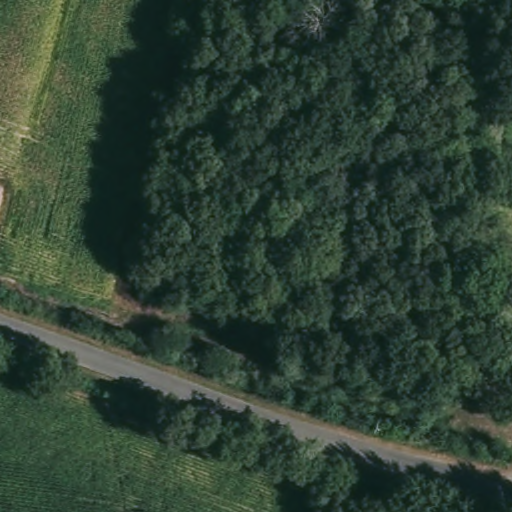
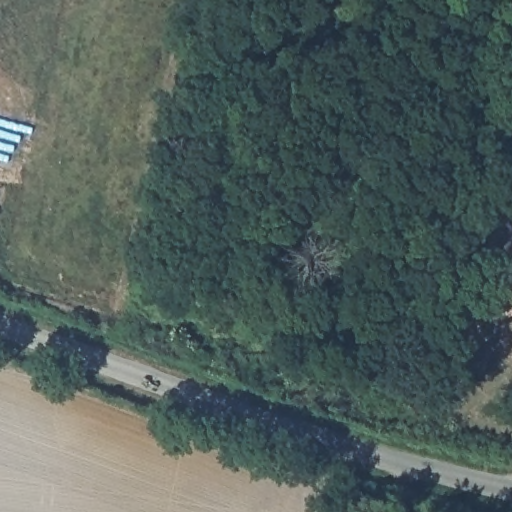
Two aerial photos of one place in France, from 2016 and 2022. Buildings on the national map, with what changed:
[]

